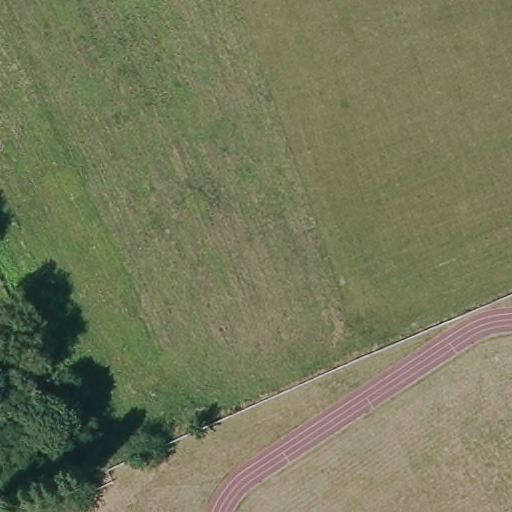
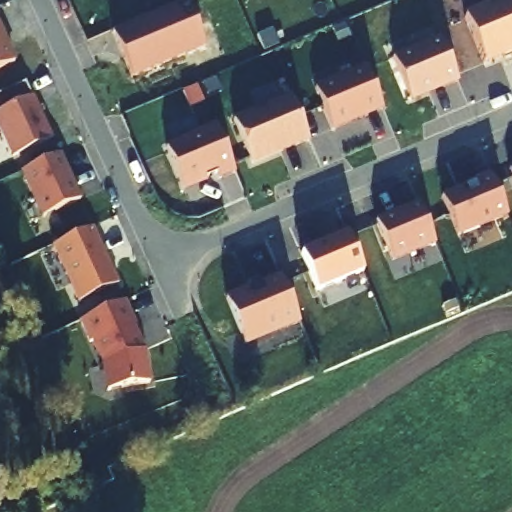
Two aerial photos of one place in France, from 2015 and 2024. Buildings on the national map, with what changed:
new [(464,22),(510,2),(512,7),(512,56),(483,67),(464,22)]
new [(182,27),(193,23),(203,49),(130,80),(110,34),(174,7),(182,27)]
new [(1,45),(4,46),(12,64),(0,70),(0,42),(1,45)]
new [(441,91),(440,89),(408,102),(392,61),(440,42),(457,84),(441,91)]
new [(512,58),(512,60),(502,65),(501,60),(511,56),(512,58)]
new [(331,132),(314,92),(365,71),(381,112),(331,132)]
new [(10,159),(0,137),(0,112),(31,98),(50,141),(10,159)]
new [(250,167),(232,124),(290,100),(308,144),(250,167)]
new [(217,182),(215,176),(181,190),(165,150),(190,139),(188,137),(214,127),(234,175),(217,182)]
new [(77,202),(40,219),(20,174),(56,157),(77,202)]
new [(512,169),(512,185),(505,172),(512,169)]
new [(506,219),(460,241),(440,197),(487,177),(506,219)]
new [(435,247),(392,264),(374,222),(415,205),(435,247)]
new [(115,287),(75,305),(50,248),(90,230),(115,287)]
new [(362,275),(318,295),(300,255),(345,235),(362,275)]
new [(297,324),(242,347),(224,302),(246,292),(245,290),(257,285),(256,282),(276,275),(297,324)]
new [(121,304),(132,330),(130,331),(140,353),(146,386),(105,393),(100,366),(90,343),(87,345),(77,323),(121,304)]

